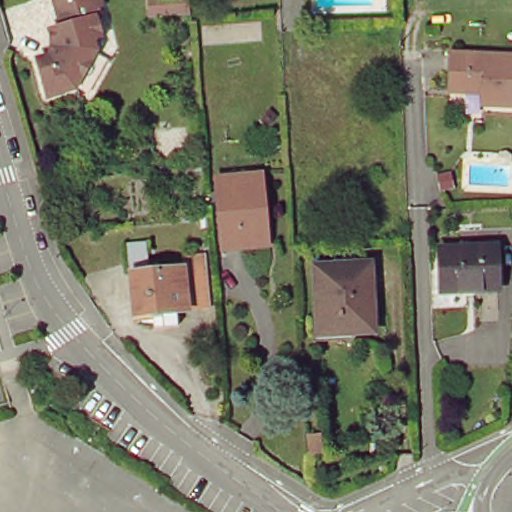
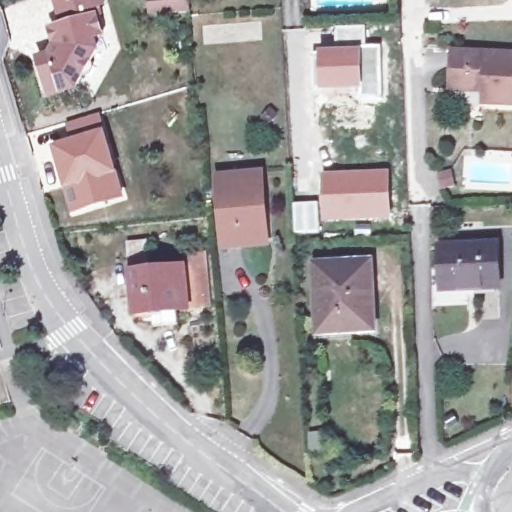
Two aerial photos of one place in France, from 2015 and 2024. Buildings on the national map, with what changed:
unchanged [(101,38),(93,40),(96,52),(76,90),(49,98),(39,60),(50,57),(55,47),(50,32),(62,28),(54,0),(101,0),(102,6),(97,7),(100,18),(96,19),(101,38)]
unchanged [(181,5),(152,8),(152,0),(191,0),(191,4),(181,5)]
new [(335,48),(335,27),(365,26),(366,45),(361,45),(361,89),(320,90),(319,49),(335,48)]
new [(361,89),(361,45),(366,45),(381,44),(382,98),(361,98),(361,89)]
unchanged [(453,84),(455,51),(512,54),(512,105),(486,103),(486,91),(453,90),(453,84)]
new [(69,139),(65,122),(100,111),(126,197),(69,214),(51,145),(69,139)]
new [(294,233),(292,202),(322,200),(323,172),(390,169),(391,218),(320,222),(320,232),(294,233)]
unchanged [(262,243),(225,245),(220,176),(266,173),(268,208),(270,242),(262,243)]
unchanged [(7,203),(0,206),(0,183),(0,182),(7,203)]
unchanged [(499,241),(500,282),(445,284),(445,243),(499,241)]
unchanged [(146,323),(145,312),(127,314),(125,272),(178,267),(180,282),(196,280),(198,307),(167,310),(168,320),(146,323)]
unchanged [(320,330),(318,269),(373,268),(375,314),(365,314),(366,334),(340,335),(320,335),(320,330)]

